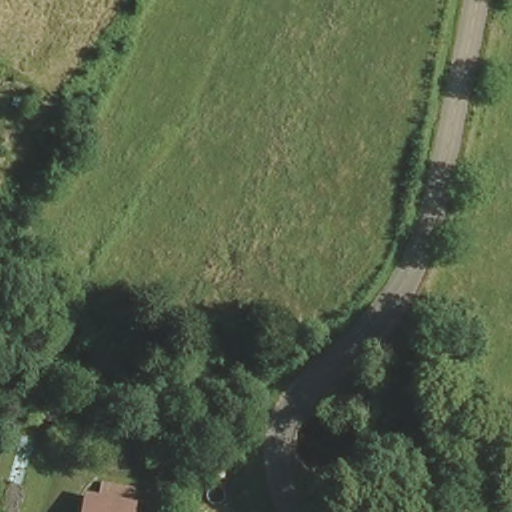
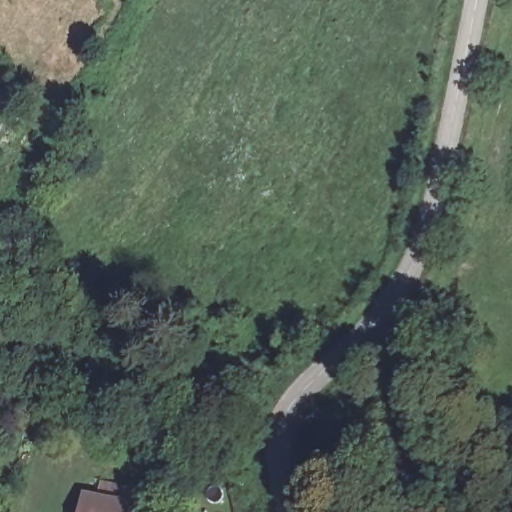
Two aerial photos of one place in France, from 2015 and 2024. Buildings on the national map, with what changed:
unchanged [(73,403),(65,431),(26,420),(33,392),(73,403)]
unchanged [(93,486),(141,507),(138,512),(83,512),(93,486)]

